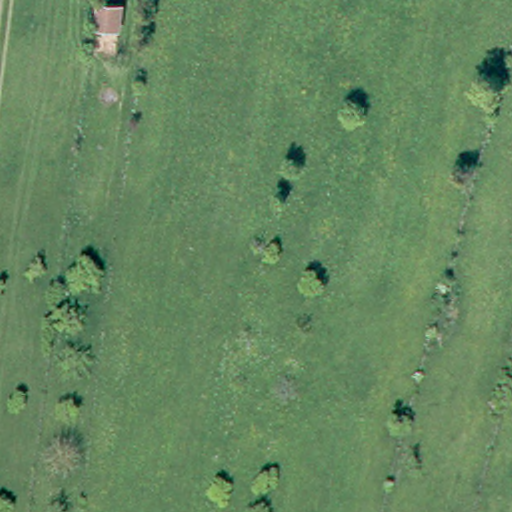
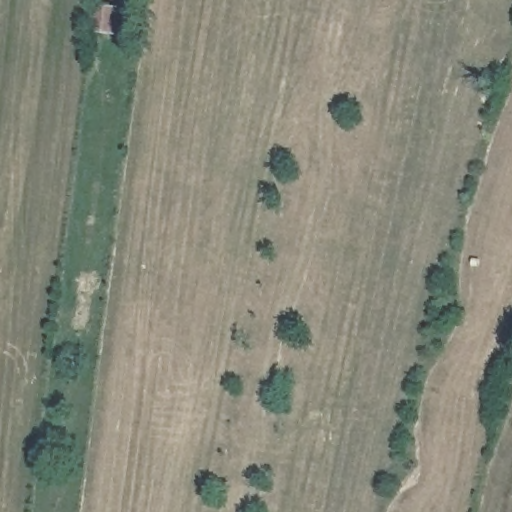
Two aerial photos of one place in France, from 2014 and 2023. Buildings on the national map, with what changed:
unchanged [(121,3),(114,55),(86,52),(95,1),(121,3)]

